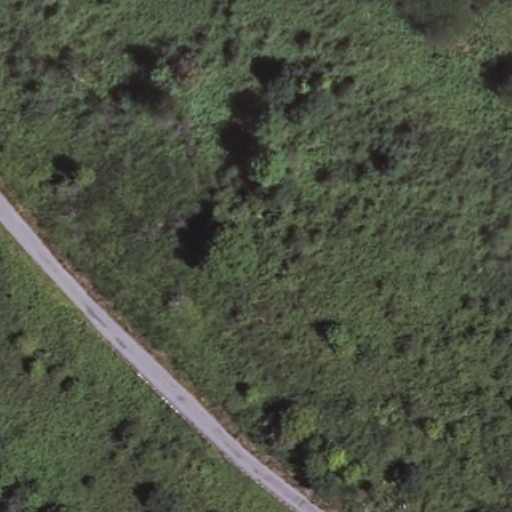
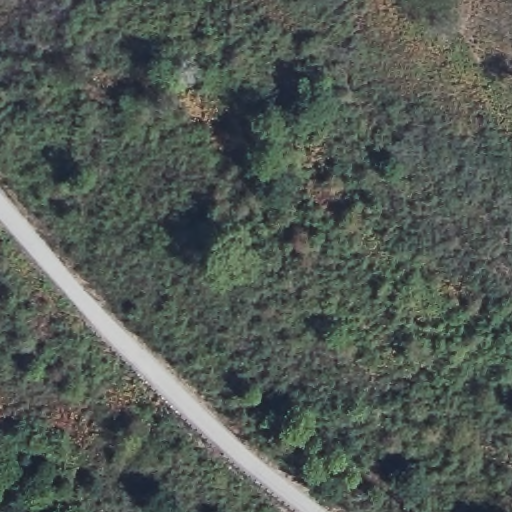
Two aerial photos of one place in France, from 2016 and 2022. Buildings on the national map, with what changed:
[]

